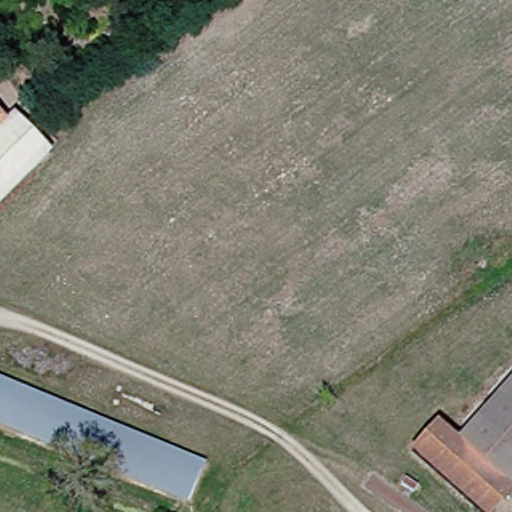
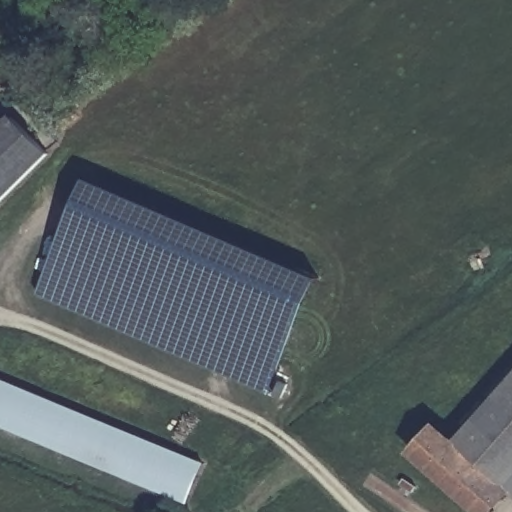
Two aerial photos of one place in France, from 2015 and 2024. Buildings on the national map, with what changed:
unchanged [(2,117),(39,154),(0,193),(0,120),(2,117)]
new [(319,278),(269,394),(38,295),(88,179),(319,278)]
unchanged [(179,500),(0,426),(0,376),(198,458),(179,500)]
unchanged [(495,487),(452,447),(512,382),(512,493),(507,498),(495,487)]
unchanged [(495,487),(472,512),(469,512),(402,450),(427,423),(452,447),(495,487)]

